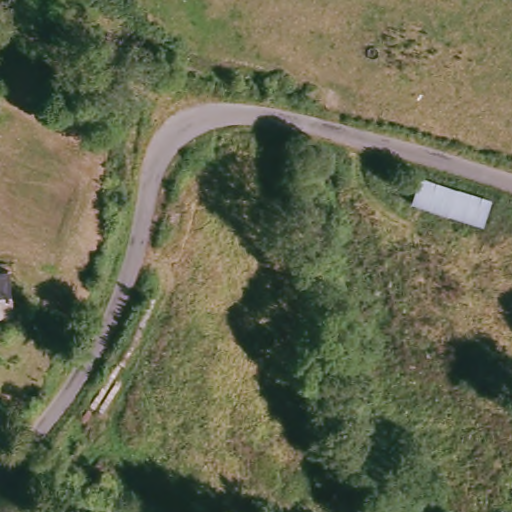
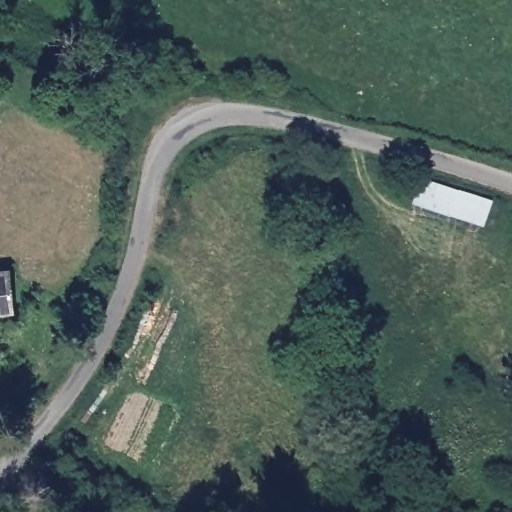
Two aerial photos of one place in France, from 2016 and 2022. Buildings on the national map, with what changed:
unchanged [(411,201),(417,176),(487,198),(481,223),(411,201)]
unchanged [(7,310),(0,311),(0,271),(5,270),(7,310)]

